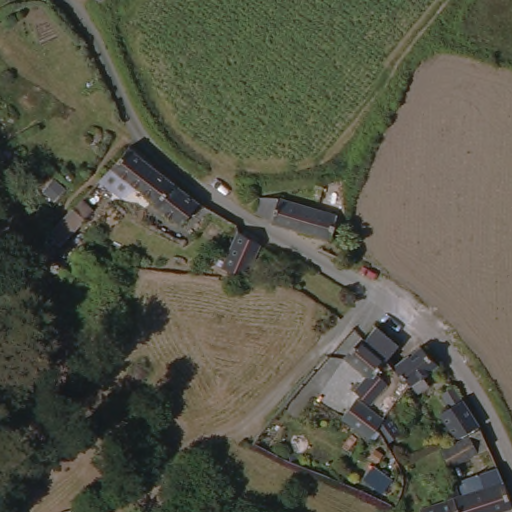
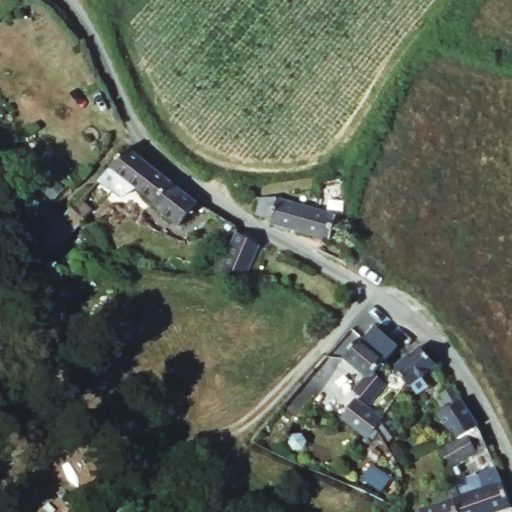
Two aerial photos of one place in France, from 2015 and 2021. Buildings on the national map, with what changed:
unchanged [(84,2),(82,0),(88,0),(84,2)]
unchanged [(199,206),(181,229),(162,215),(149,206),(152,202),(108,171),(124,152),(178,194),(183,198),(199,206)]
unchanged [(339,241),(288,227),(268,216),(271,201),(338,221),(345,226),(345,229),(352,232),(354,241),(341,237),(339,241)]
unchanged [(72,237),(58,226),(73,211),(85,221),(72,237)]
unchanged [(247,278),(219,276),(234,237),(259,247),(247,278)]
unchanged [(356,337),(362,341),(368,334),(378,323),(388,332),(398,343),(389,353),(384,358),(367,377),(340,353),(356,337)]
unchanged [(423,346),(436,365),(423,374),(429,381),(417,391),(412,383),(398,365),(423,346)]
unchanged [(365,394),(387,420),(369,434),(368,435),(346,409),(365,394)]
unchanged [(433,419),(442,414),(436,404),(451,397),(460,411),(468,425),(483,452),(436,474),(423,448),(444,437),(433,419)]
unchanged [(495,479),(449,503),(440,485),(487,462),(495,479)]
unchanged [(498,512),(453,512),(449,503),(495,479),(509,506),(498,512)]
unchanged [(393,494),(386,508),(362,496),(368,483),(393,494)]
unchanged [(449,503),(453,512),(432,512),(434,511),(449,503)]

